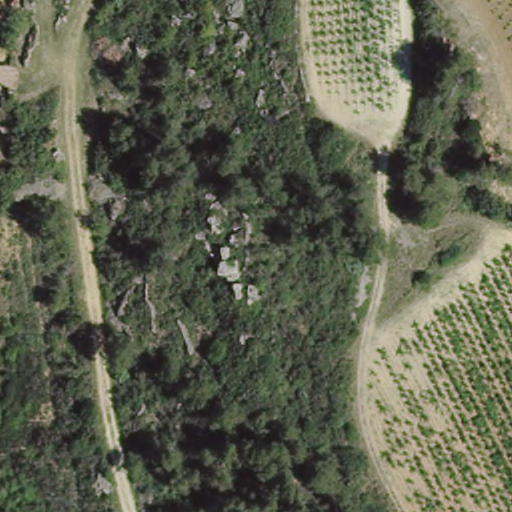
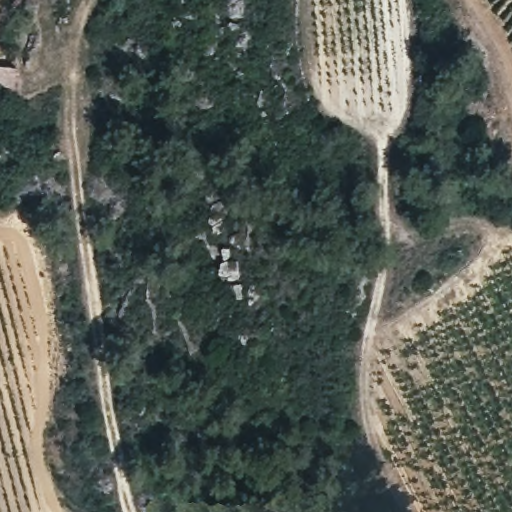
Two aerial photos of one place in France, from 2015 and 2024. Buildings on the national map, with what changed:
unchanged [(16,67),(13,86),(0,83),(0,62),(16,67)]

